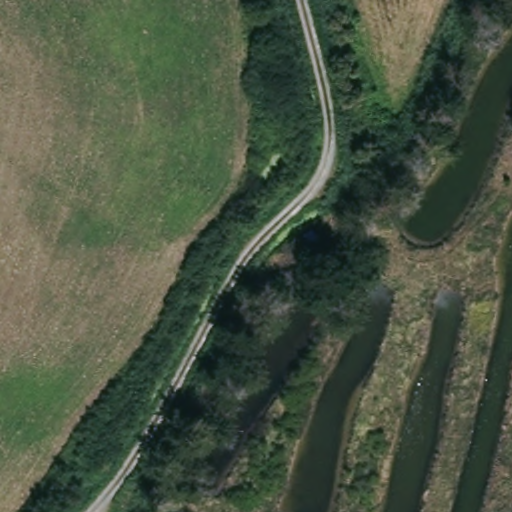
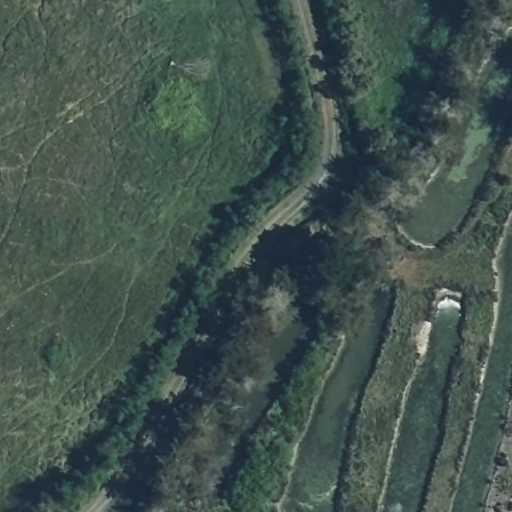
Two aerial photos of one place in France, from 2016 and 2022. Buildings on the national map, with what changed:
[]

